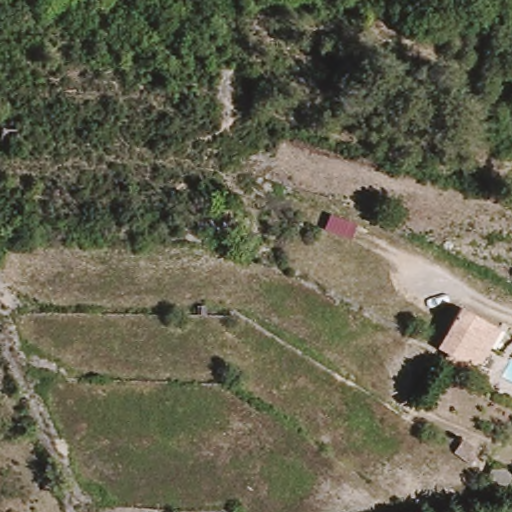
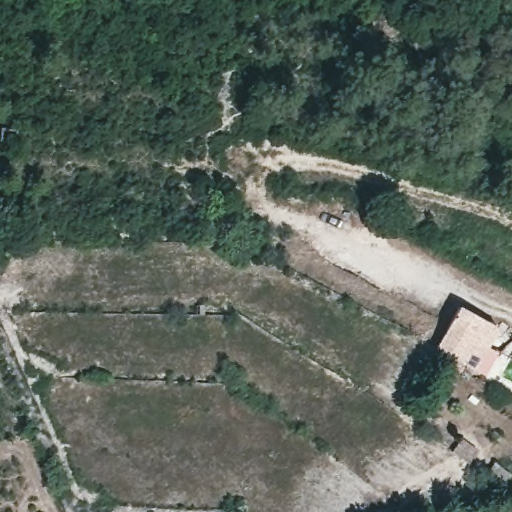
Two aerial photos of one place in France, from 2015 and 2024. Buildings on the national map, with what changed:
unchanged [(18,130),(17,147),(1,146),(1,129),(18,130)]
unchanged [(462,367),(460,371),(441,362),(442,358),(445,353),(436,348),(458,307),(497,327),(488,343),(487,345),(473,372),(462,367)]
unchanged [(469,463),(452,452),(462,439),(478,450),(469,463)]
unchanged [(504,489),(485,476),(494,464),(512,477),(504,489)]

